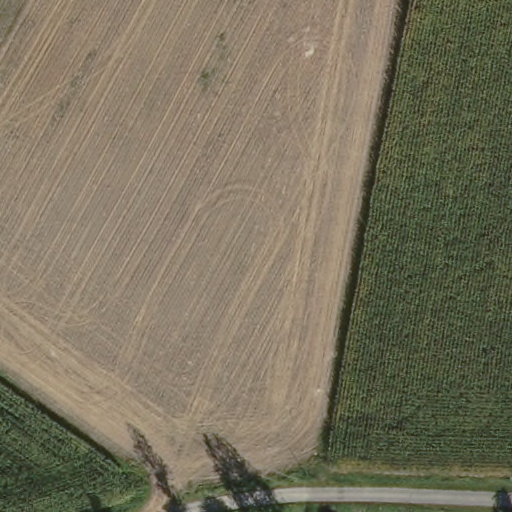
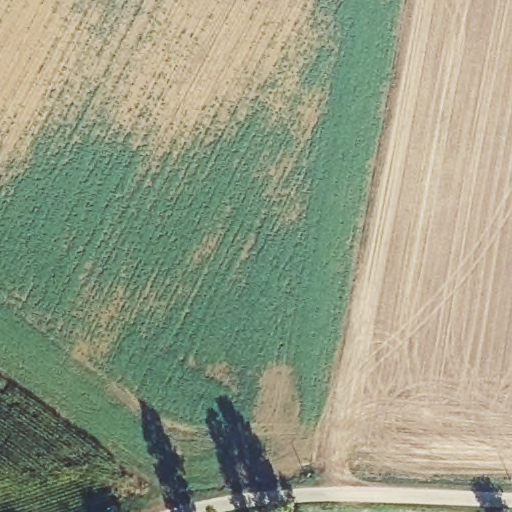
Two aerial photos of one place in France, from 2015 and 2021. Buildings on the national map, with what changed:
[]

